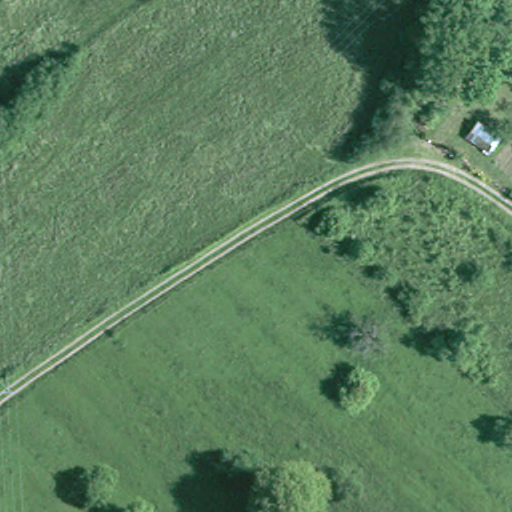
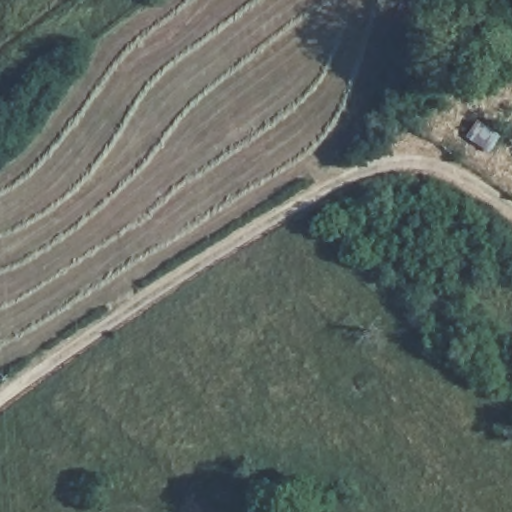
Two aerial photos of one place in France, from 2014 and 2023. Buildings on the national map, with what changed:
unchanged [(499,140),(496,145),(473,130),(480,119),(497,130),(494,135),(499,140)]

